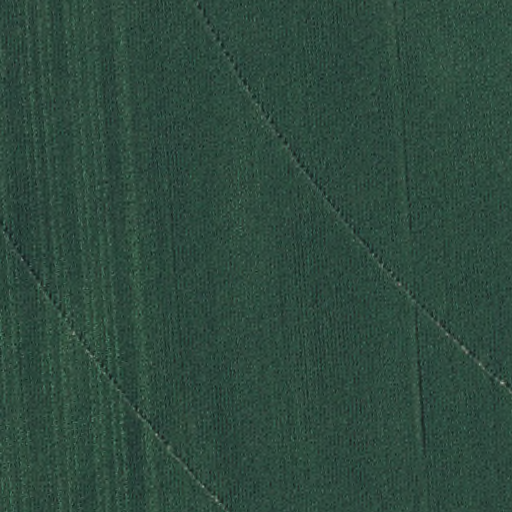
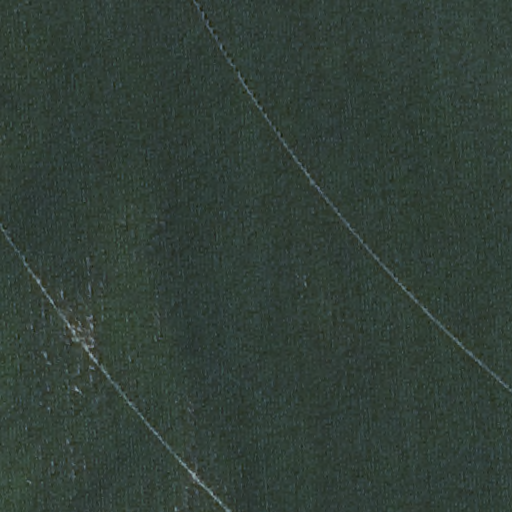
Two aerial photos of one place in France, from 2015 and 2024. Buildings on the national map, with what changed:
[]

